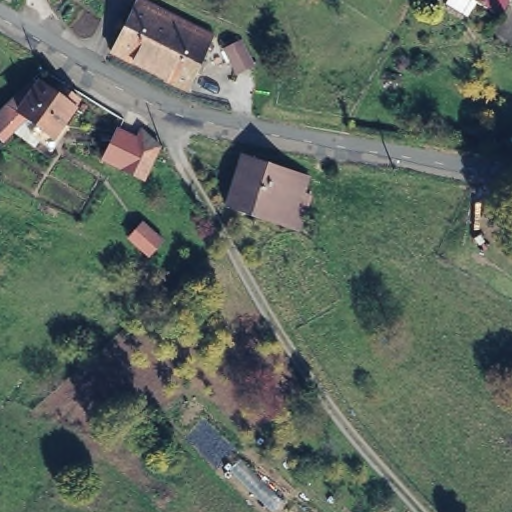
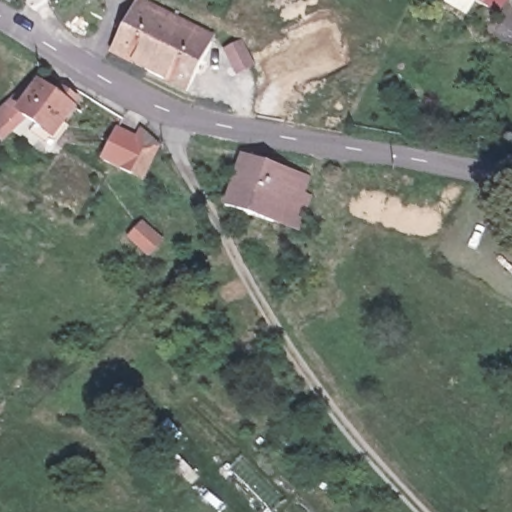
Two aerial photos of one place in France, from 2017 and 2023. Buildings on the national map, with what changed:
unchanged [(449,0),(505,0),(497,14),(477,3),(472,11),(468,19),(445,9),(449,0)]
unchanged [(210,46),(185,92),(108,51),(122,29),(113,24),(119,14),(126,18),(134,5),(210,46)]
unchanged [(241,38),(252,64),(235,73),(222,49),(241,38)]
unchanged [(7,104),(35,78),(54,91),(60,84),(80,95),(54,134),(24,114),(0,137),(0,110),(7,104)]
unchanged [(107,159),(125,132),(144,142),(149,134),(159,142),(165,148),(140,184),(115,165),(107,159)]
unchanged [(287,218),(280,215),(277,221),(260,216),(258,220),(215,204),(242,153),(300,173),(292,190),(300,192),(287,218)]
unchanged [(168,242),(149,263),(126,236),(142,219),(168,242)]

